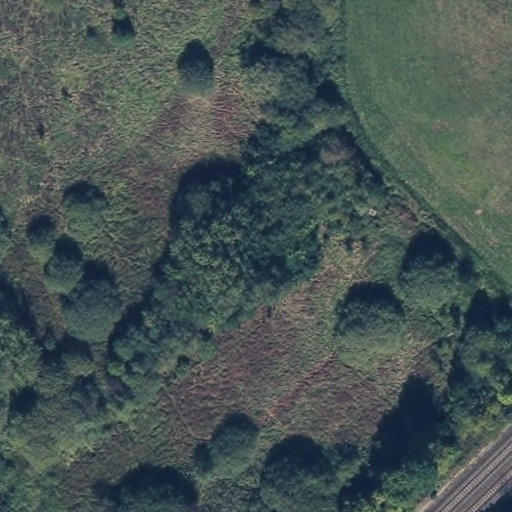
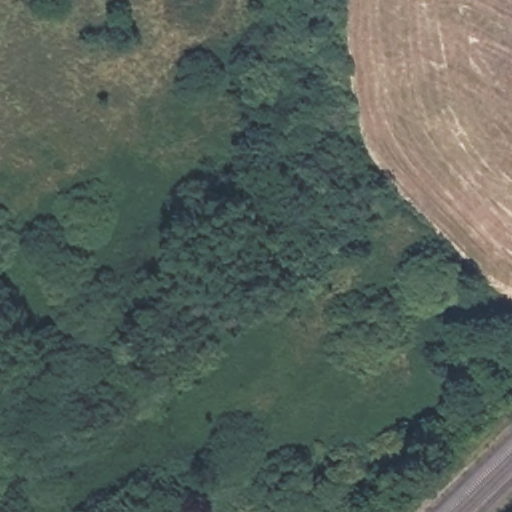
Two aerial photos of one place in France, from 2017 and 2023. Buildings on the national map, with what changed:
[]

